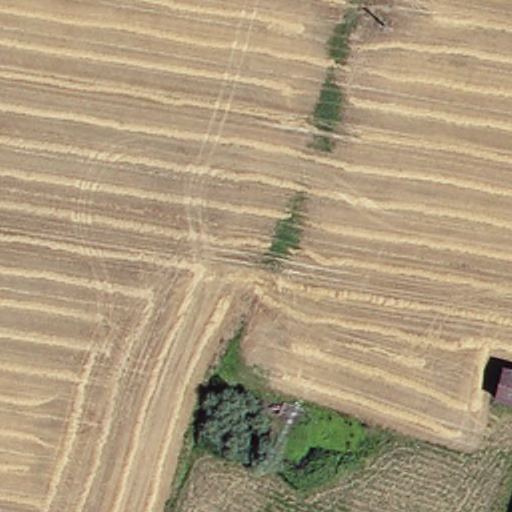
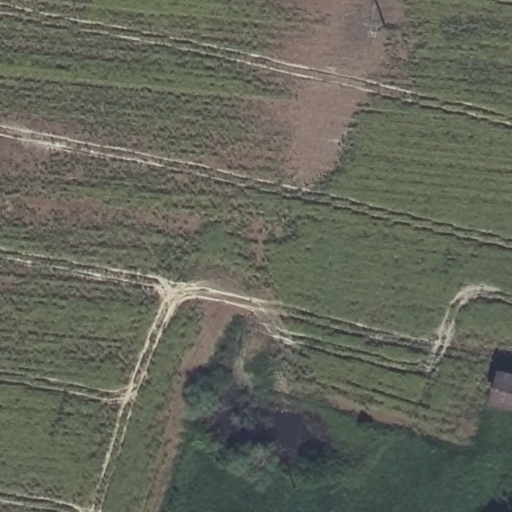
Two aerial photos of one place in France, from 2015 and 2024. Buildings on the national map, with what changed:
unchanged [(512,376),(512,406),(490,401),(497,373),(512,376)]

